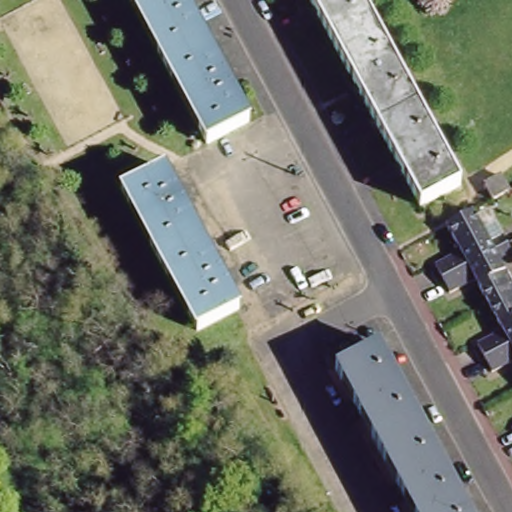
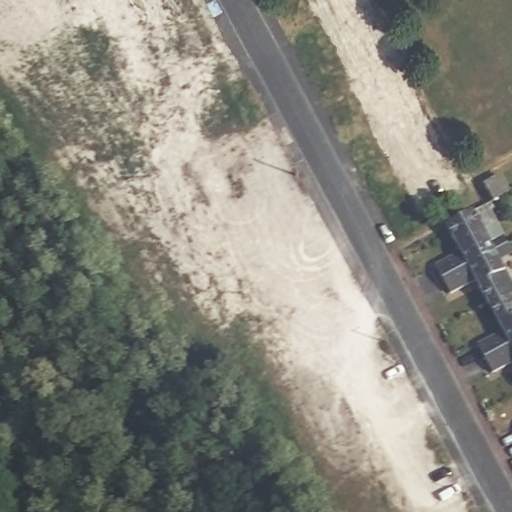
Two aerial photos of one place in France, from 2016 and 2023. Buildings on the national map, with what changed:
demolished [(129,0),(156,0),(194,120),(129,0)]
demolished [(219,165),(194,120),(156,0),(180,0),(184,0),(202,35),(235,95),(214,107),(230,159),(219,165)]
demolished [(310,0),(359,0),(372,23),(335,44),(310,0)]
demolished [(352,76),(335,44),(372,23),(390,56),(352,76)]
demolished [(371,109),(352,76),(390,56),(408,89),(371,109)]
demolished [(395,154),(371,109),(408,89),(432,132),(395,154)]
demolished [(214,107),(235,95),(257,142),(230,159),(214,107)]
demolished [(422,202),(415,189),(395,154),(432,132),(452,169),(459,181),(422,202)]
demolished [(192,328),(121,192),(162,170),(237,312),(209,325),(192,328)]
unchanged [(511,192),(495,201),(487,186),(502,178),(511,192)]
unchanged [(489,306),(476,281),(452,294),(444,280),(437,266),(461,254),(447,227),(473,213),(490,245),(504,237),(508,245),(512,253),(512,254),(499,261),(512,286),(512,294),(489,306)]
unchanged [(493,373),(486,359),(478,345),(503,332),(489,306),(512,294),(512,363),(493,373)]
demolished [(467,512),(413,512),(337,370),(379,347),(467,512)]

